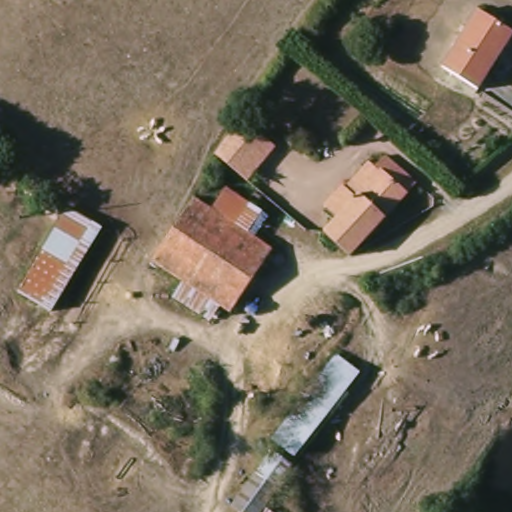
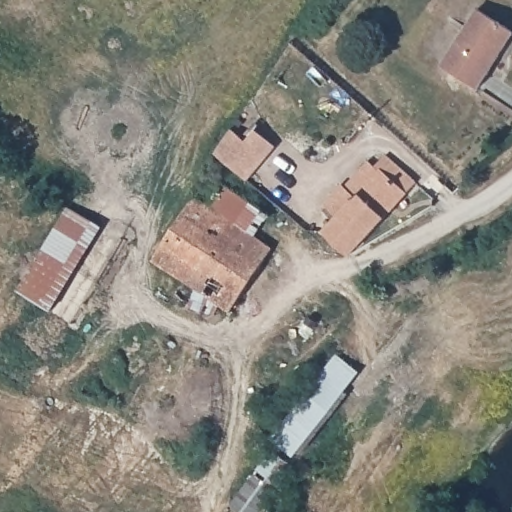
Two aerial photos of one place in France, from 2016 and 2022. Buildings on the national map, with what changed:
unchanged [(447,67),(483,10),(512,28),(512,44),(483,90),(447,67)]
unchanged [(252,181),(223,157),(220,154),(236,129),(251,142),(261,130),(280,147),(252,181)]
unchanged [(329,232),(343,217),(328,205),(347,185),(350,188),(373,161),(380,167),(391,155),(422,183),(355,256),(329,232)]
unchanged [(231,189),(272,218),(259,240),(235,224),(211,209),(231,189)]
unchanged [(175,298),(185,282),(152,261),(193,197),(211,209),(259,240),(273,249),(231,313),(219,305),(209,321),(175,298)]
unchanged [(56,311),(23,292),(73,208),(105,227),(56,311)]
unchanged [(295,456),(271,439),(336,355),(359,373),(295,456)]
unchanged [(240,512),(232,507),(272,451),(293,466),(259,512),(240,512)]

